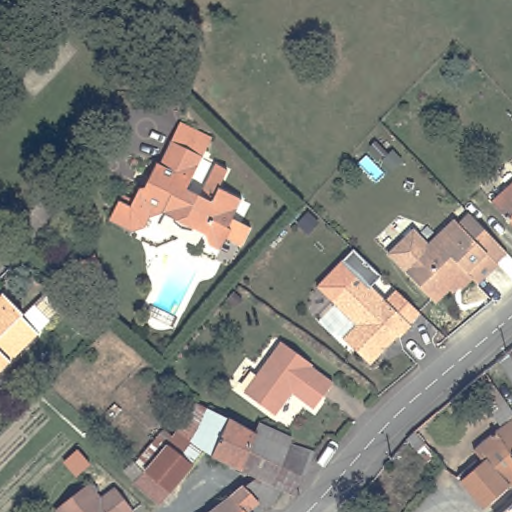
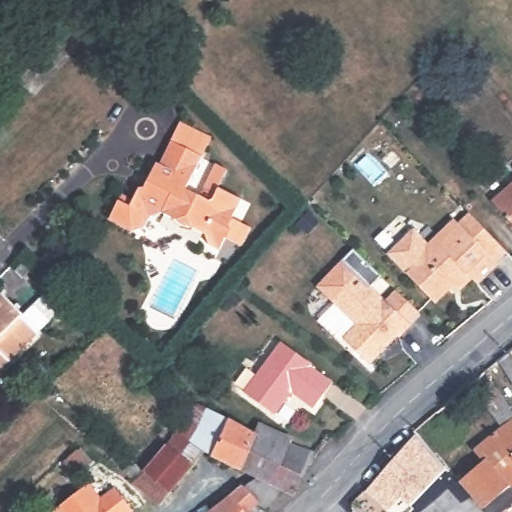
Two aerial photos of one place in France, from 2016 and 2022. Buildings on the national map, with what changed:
unchanged [(116,207),(126,189),(137,194),(142,184),(155,182),(159,175),(153,171),(160,159),(164,160),(177,138),(207,154),(190,185),(204,193),(209,183),(219,189),(221,185),(245,198),(241,205),(230,224),(234,226),(222,247),(211,242),(208,232),(203,229),(166,210),(162,211),(152,214),(146,225),(136,229),(132,226),(120,220),(116,207)]
unchanged [(512,184),(512,227),(491,203),(512,184)]
unchanged [(420,234),(434,249),(459,226),(463,230),(474,220),(483,230),(489,236),(495,242),(511,259),(500,269),(502,271),(481,291),(476,286),(457,304),(451,298),(441,308),(394,258),(420,234)]
unchanged [(335,303),(332,300),(318,285),(322,282),(355,249),(383,277),(372,288),(387,302),(398,291),(414,307),(421,315),(410,326),(412,327),(399,340),(397,338),(370,365),(342,339),(340,342),(318,321),(335,303)]
unchanged [(25,315),(24,316),(41,334),(0,375),(0,300),(5,295),(25,315)]
unchanged [(245,389),(248,386),(283,339),(313,362),(312,364),(335,381),(314,407),(292,391),(276,413),(245,389)]
unchanged [(162,505),(135,482),(170,444),(178,433),(187,418),(198,402),(213,411),(256,432),(260,424),(264,426),(288,438),(293,440),(291,443),(290,445),(293,446),(315,455),(322,446),(329,436),(331,438),(312,466),(295,495),(283,489),(277,498),(271,504),(266,508),(260,509),(253,506),(246,512),(244,512),(234,502),(230,499),(238,492),(245,486),(248,488),(258,478),(204,451),(162,505)]
unchanged [(509,427),(512,423),(512,431),(509,427)]
new [(402,499),(390,512),(387,512),(367,492),(416,434),(445,470),(411,506),(402,499)]
unchanged [(480,461),(474,454),(496,435),(503,443),(512,435),(512,489),(509,491),(498,500),(485,511),(462,485),(464,483),(460,479),(480,461)]
unchanged [(134,511),(133,512),(60,512),(90,487),(101,500),(114,488),(121,496),(134,511)]
unchanged [(234,502),(244,512),(217,512),(226,506),(234,502)]
unchanged [(511,512),(512,511),(512,512),(511,512)]

